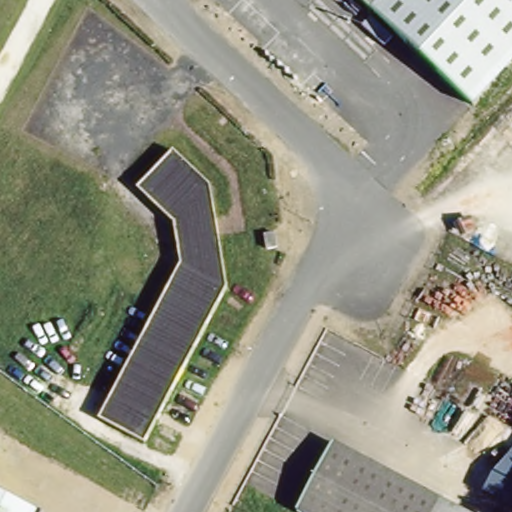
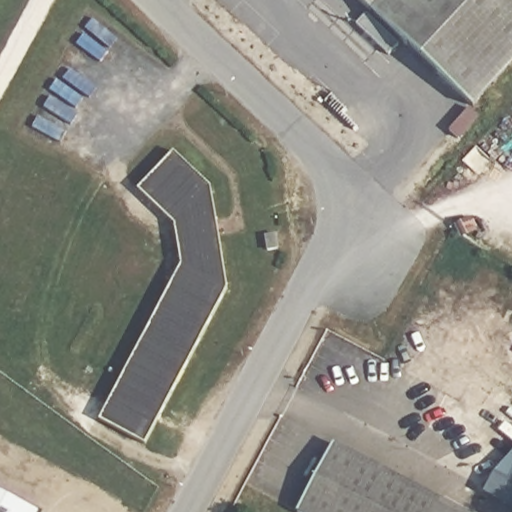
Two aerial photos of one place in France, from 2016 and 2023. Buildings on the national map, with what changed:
unchanged [(372,9),(362,0),(512,0),(512,65),(474,106),(372,9)]
unchanged [(203,178),(231,278),(152,430),(108,405),(184,262),(177,217),(145,194),(177,157),(203,178)]
unchanged [(459,512),(303,512),(297,509),(335,443),(459,512)]
unchanged [(512,502),(483,489),(512,451),(512,502)]
unchanged [(46,512),(0,512),(0,485),(46,512)]

